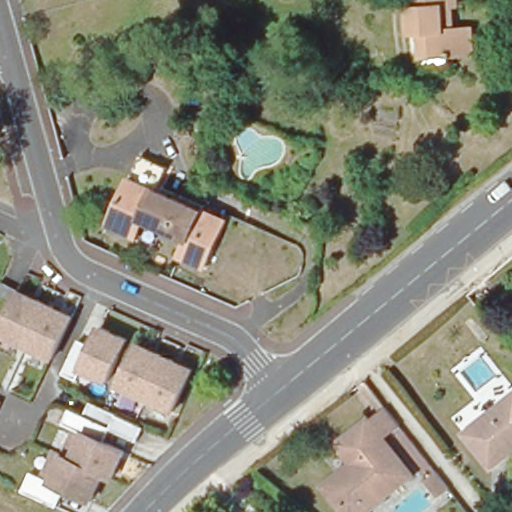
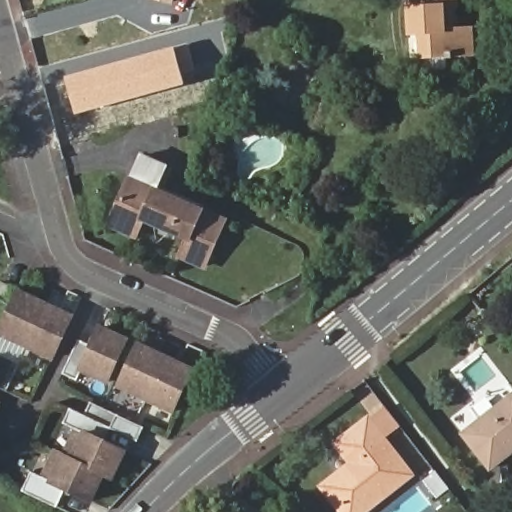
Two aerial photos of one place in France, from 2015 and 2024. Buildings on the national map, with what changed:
new [(154,0),(171,0),(170,4),(154,0)]
unchanged [(422,26),(408,26),(408,0),(448,0),(447,12),(447,25),(470,25),(477,25),(477,50),(470,50),(447,50),(447,64),(422,64),(422,50),(422,26)]
new [(176,47),(186,85),(77,115),(66,77),(176,47)]
unchanged [(202,266),(178,255),(185,239),(141,219),(134,235),(106,222),(127,177),(137,155),(161,167),(154,183),(200,204),(197,210),(223,221),(202,266)]
unchanged [(0,335),(0,328),(16,291),(71,316),(52,358),(0,335)]
unchanged [(111,376),(85,364),(80,375),(66,368),(82,334),(96,341),(104,322),(130,334),(111,376)]
unchanged [(173,412),(117,386),(136,344),(192,370),(173,412)]
unchanged [(512,395),(512,452),(491,468),(463,432),(512,395)]
unchanged [(0,406),(0,401),(2,401),(0,406)]
unchanged [(114,481),(105,477),(93,504),(67,492),(60,508),(58,507),(29,493),(25,492),(34,472),(46,478),(58,452),(67,456),(79,430),(66,424),(73,409),(87,416),(93,403),(147,428),(139,444),(106,428),(100,441),(127,454),(114,481)]
unchanged [(365,512),(343,512),(321,485),(349,462),(335,444),(369,418),(383,407),(400,428),(385,440),(412,474),(365,512)]
unchanged [(438,498),(425,482),(437,474),(445,485),(449,489),(438,498)]

